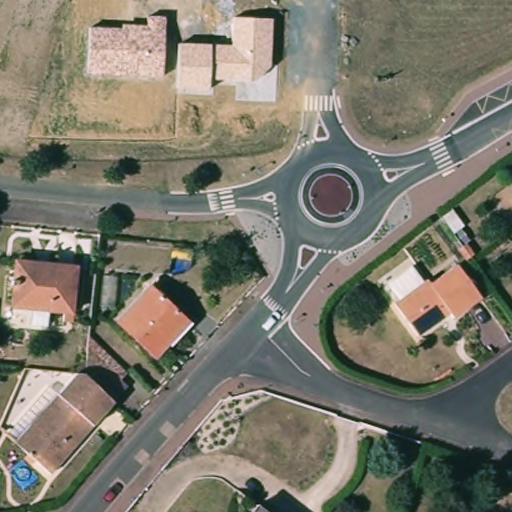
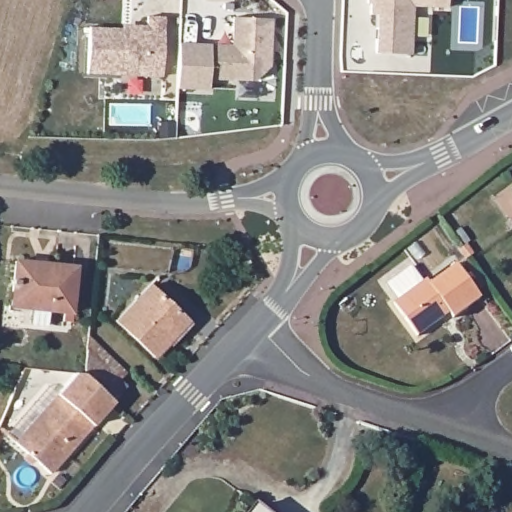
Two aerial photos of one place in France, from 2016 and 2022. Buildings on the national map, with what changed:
new [(410,54),(375,52),(377,13),(370,14),(370,5),(366,5),(367,0),(448,0),(447,8),(413,7),(410,54)]
unchanged [(119,29),(119,24),(146,25),(147,17),(167,19),(163,79),(86,75),(90,27),(119,29)]
unchanged [(272,21),(271,68),(251,83),(209,81),(209,95),(176,92),(178,44),(232,46),(232,20),(272,21)]
unchanged [(76,272),(78,274),(74,317),(68,317),(45,315),(20,312),(16,311),(22,266),(76,272)]
unchanged [(425,284),(428,287),(455,267),(478,300),(450,321),(447,321),(442,316),(415,336),(411,333),(393,306),(425,284)]
unchanged [(185,324),(155,357),(152,357),(117,325),(118,322),(149,289),(185,324)]
unchanged [(8,451),(52,403),(54,404),(74,384),(84,385),(85,380),(87,363),(92,367),(94,366),(123,392),(122,395),(110,408),(44,484),(8,451)]
unchanged [(258,507),(264,512),(255,512),(258,507)]

